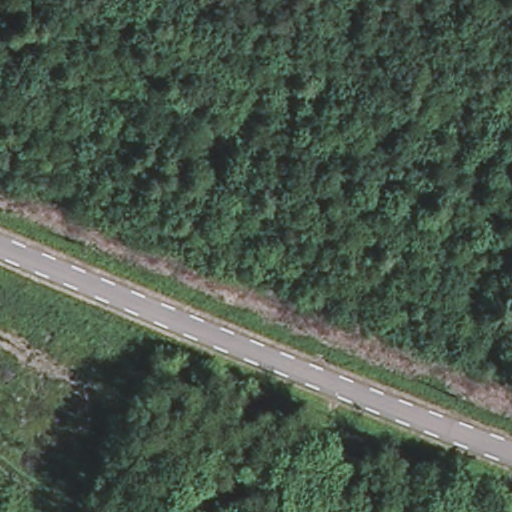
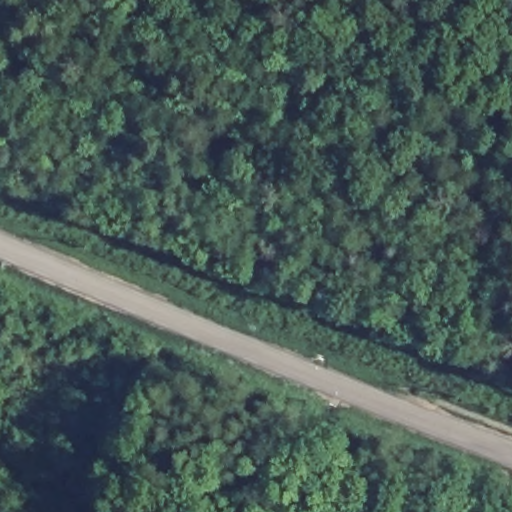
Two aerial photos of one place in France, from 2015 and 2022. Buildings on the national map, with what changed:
[]

